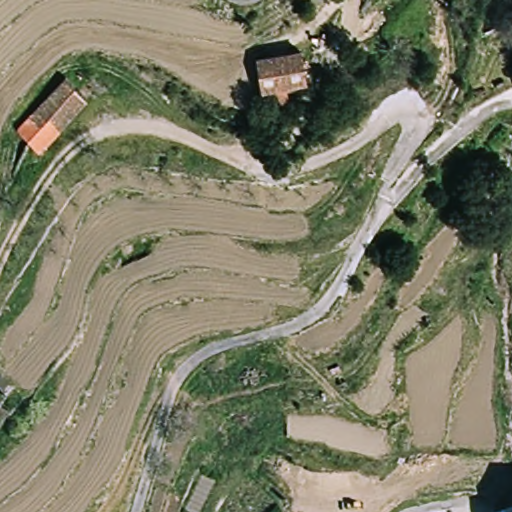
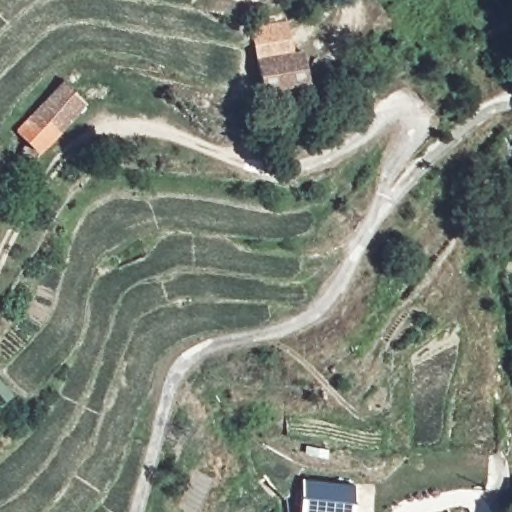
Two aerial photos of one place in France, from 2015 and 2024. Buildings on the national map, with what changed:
unchanged [(306,45),(310,76),(287,79),(291,112),(264,115),(255,51),(306,45)]
unchanged [(66,81),(89,106),(43,155),(18,132),(66,81)]
new [(298,512),(302,480),(353,485),(350,512),(298,512)]
unchanged [(506,512),(512,510),(512,512),(506,512)]

